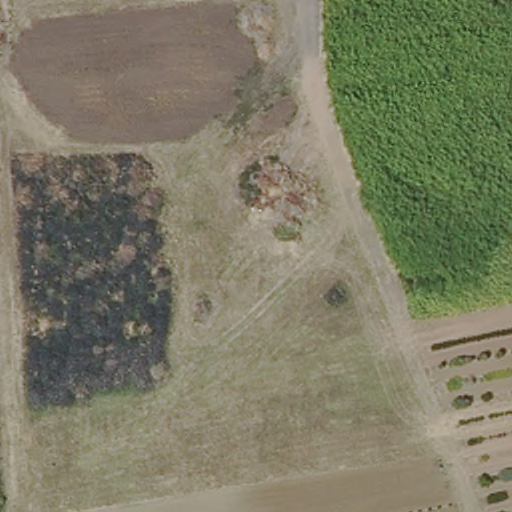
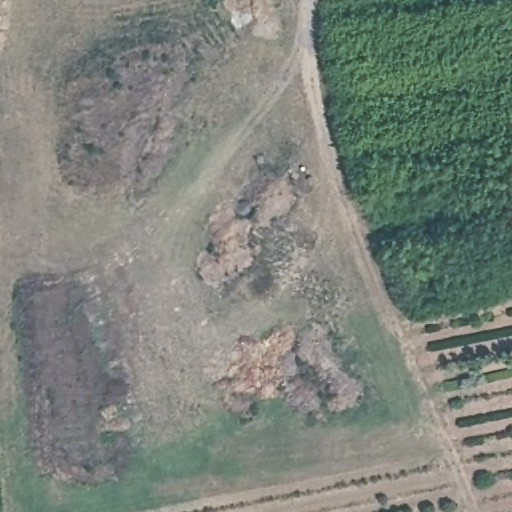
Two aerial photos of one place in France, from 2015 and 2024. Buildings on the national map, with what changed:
unchanged [(442,297),(426,298),(425,270),(440,270),(442,297)]

